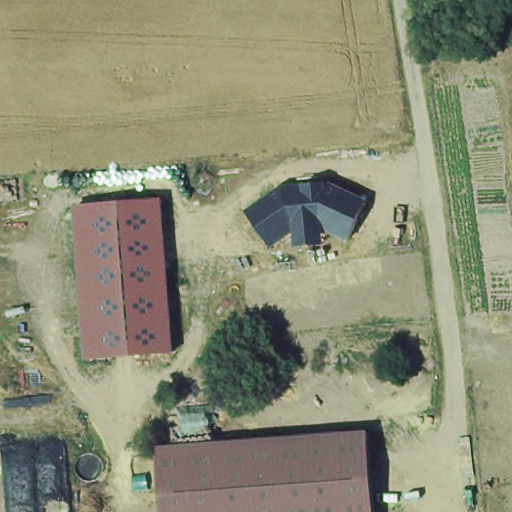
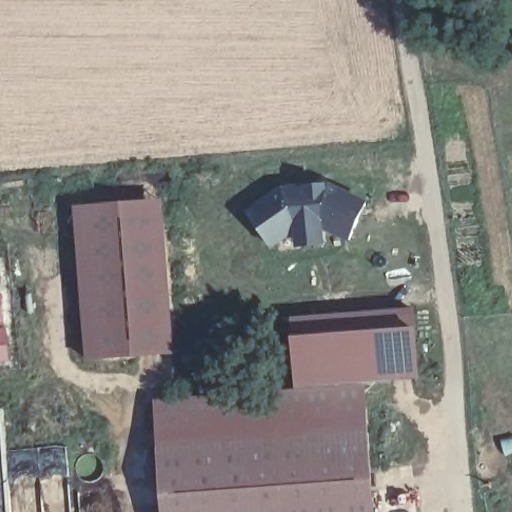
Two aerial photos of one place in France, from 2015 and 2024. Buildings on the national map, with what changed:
unchanged [(286,186),(330,182),(368,200),(349,244),(324,231),(326,245),(298,247),(296,232),(273,249),(246,213),(286,186)]
unchanged [(163,200),(173,354),(88,361),(88,360),(74,206),(163,200)]
new [(414,305),(420,383),(366,385),(291,388),(286,315),(414,305)]
new [(0,361),(0,328),(1,327),(3,361),(0,361)]
new [(158,447),(153,400),(291,388),(366,385),(369,431),(158,447)]
unchanged [(375,512),(163,512),(158,447),(369,431),(375,512)]

